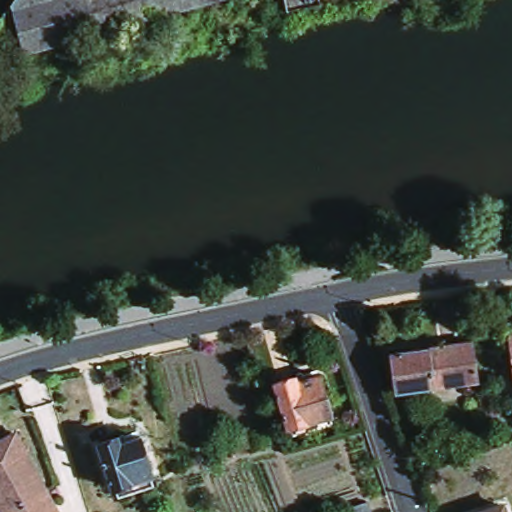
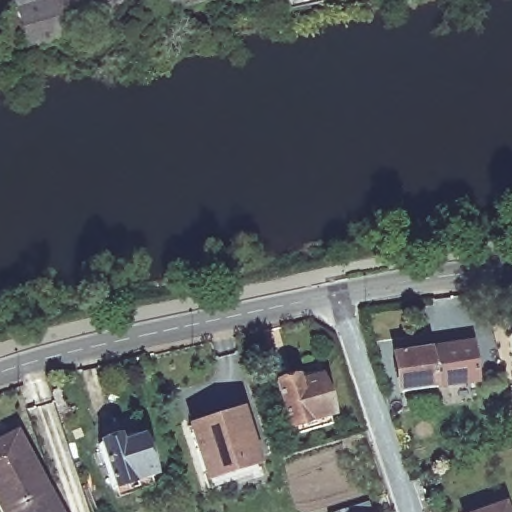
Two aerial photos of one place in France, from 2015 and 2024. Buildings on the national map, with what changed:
unchanged [(219,5),(0,68),(0,25),(2,22),(18,0),(247,0),(220,8),(219,5)]
unchanged [(315,0),(317,7),(284,16),(280,0),(315,0)]
unchanged [(329,356),(322,331),(334,327),(343,352),(329,356)]
unchanged [(507,340),(512,340),(512,375),(507,340)]
unchanged [(479,380),(402,391),(396,354),(473,343),(479,380)]
unchanged [(334,418),(290,432),(275,387),(297,380),(299,387),(322,380),(334,418)]
new [(187,425),(243,408),(259,465),(204,482),(187,425)]
unchanged [(0,443),(15,435),(45,493),(11,512),(0,512),(0,443)]
unchanged [(152,480),(111,492),(97,446),(116,440),(119,446),(139,440),(152,480)]
demolished [(364,455),(376,452),(380,451),(384,465),(380,466),(369,470),(364,455)]
unchanged [(55,512),(11,512),(45,493),(55,512)]
unchanged [(509,512),(490,512),(508,506),(509,512)]

